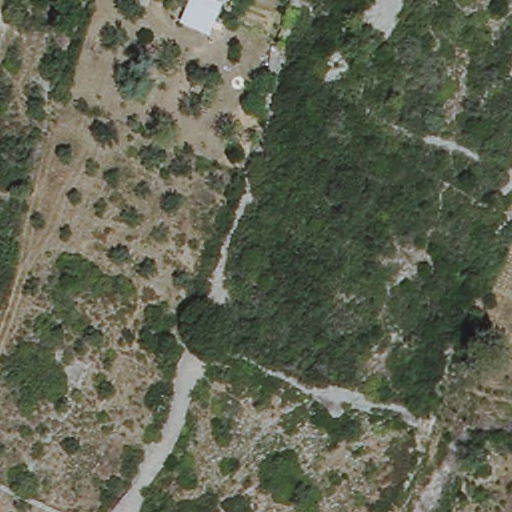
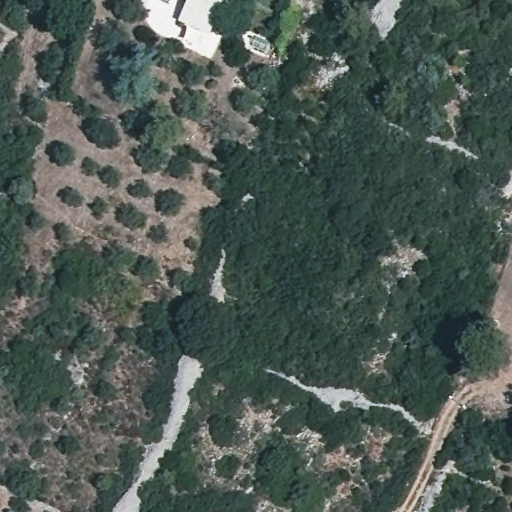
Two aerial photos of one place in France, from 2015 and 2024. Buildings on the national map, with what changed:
unchanged [(183,9),(186,0),(222,0),(212,23),(183,9)]

